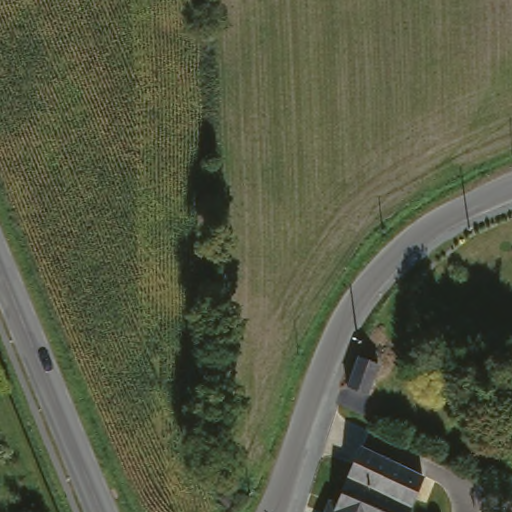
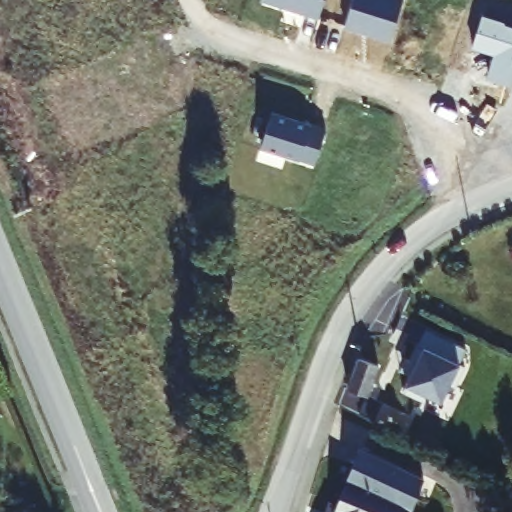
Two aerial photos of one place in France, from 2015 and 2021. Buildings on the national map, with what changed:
new [(324,0),(318,19),(261,2),(261,0),(324,0)]
new [(399,0),(403,1),(390,43),(344,29),(353,0),(399,0)]
new [(481,19),(512,29),(512,86),(489,79),(497,55),(473,48),(481,19)]
new [(271,115),(325,133),(315,166),(260,149),(271,115)]
new [(410,374),(406,371),(419,344),(445,356),(452,343),(467,349),(460,363),(464,366),(455,387),(449,384),(441,401),(426,394),(424,399),(403,391),(410,374)]
unchanged [(382,361),(372,396),(341,387),(351,350),(382,361)]
unchanged [(352,443),(421,469),(404,512),(325,512),(352,443)]

